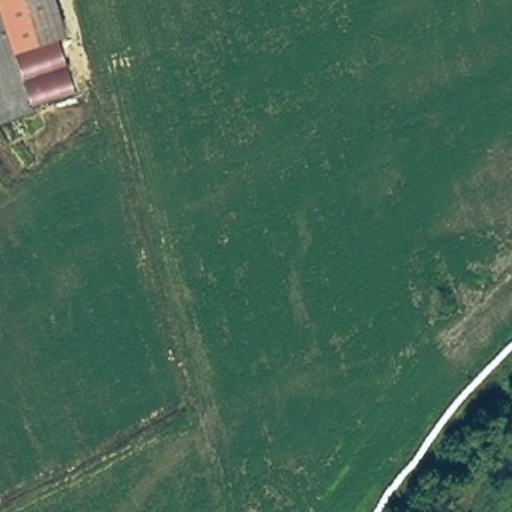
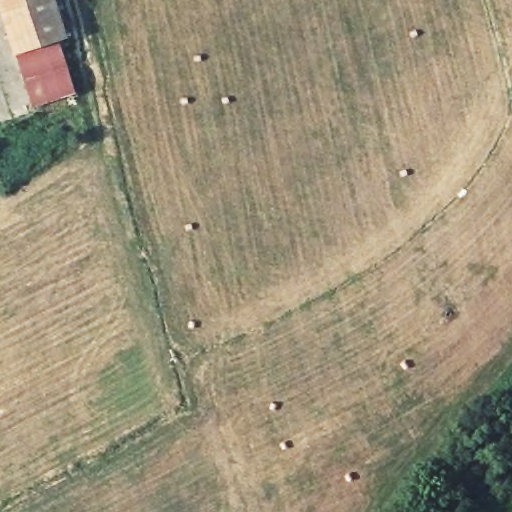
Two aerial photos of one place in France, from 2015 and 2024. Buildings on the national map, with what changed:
unchanged [(26,111),(0,17),(0,0),(60,0),(71,38),(66,40),(79,96),(26,111)]

